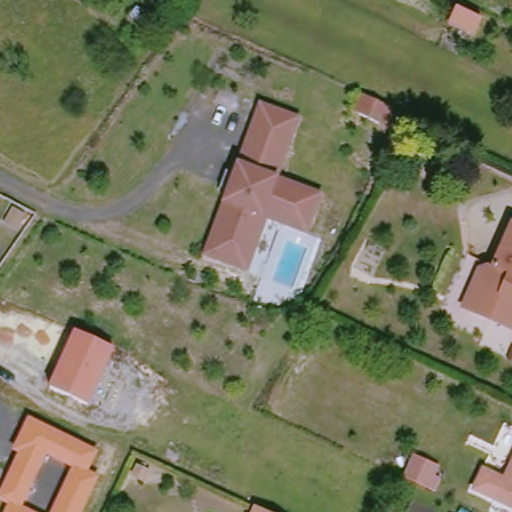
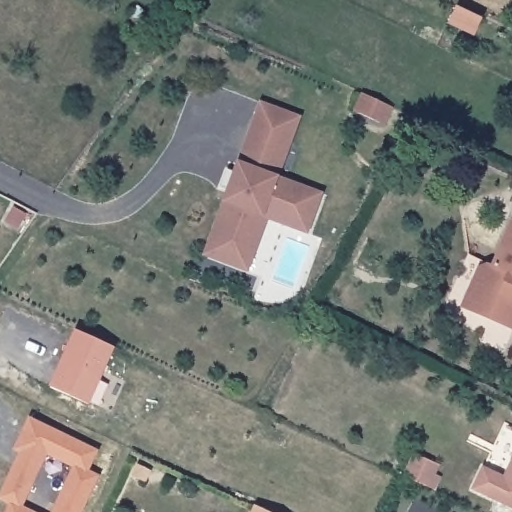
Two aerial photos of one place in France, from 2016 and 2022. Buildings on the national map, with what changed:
unchanged [(262,105),(301,117),(292,145),(252,131),(262,105)]
unchanged [(205,256),(216,228),(252,131),(292,145),(280,179),(323,195),(308,235),(269,220),(254,257),(248,272),(205,256)]
unchanged [(505,334),(482,324),(501,280),(485,273),(506,227),(512,230),(512,317),(505,334)]
unchanged [(485,273),(501,280),(482,324),(459,313),(478,270),(485,273)]
unchanged [(115,348),(86,407),(48,388),(76,331),(115,348)]
unchanged [(98,474),(80,512),(49,512),(71,467),(46,455),(23,505),(38,512),(3,512),(7,503),(0,499),(0,490),(19,452),(11,448),(28,416),(97,449),(89,468),(98,474)]
unchanged [(440,468),(437,476),(442,477),(437,490),(411,478),(419,459),(440,468)]
unchanged [(504,481),(512,463),(512,508),(472,488),(481,470),(504,481)]
unchanged [(265,512),(253,512),(256,507),(265,512)]

